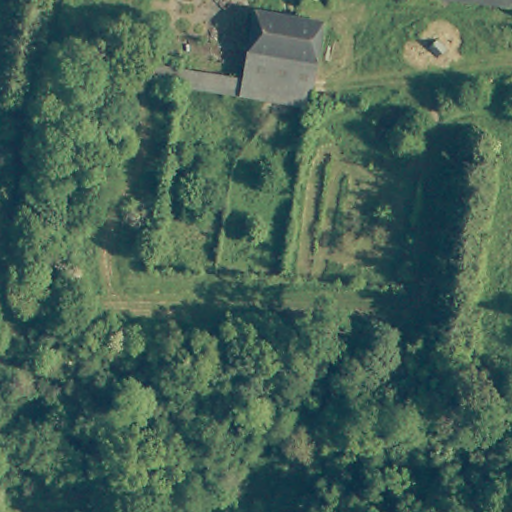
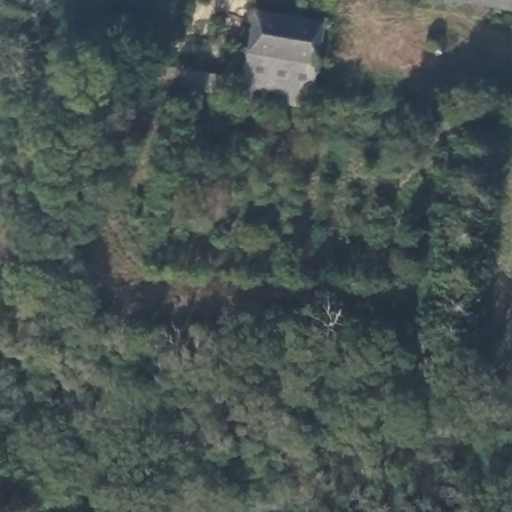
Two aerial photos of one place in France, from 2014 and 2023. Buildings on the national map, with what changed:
unchanged [(334,6),(307,4),(307,0),(335,0),(334,6)]
unchanged [(482,0),(512,0),(512,4),(482,0)]
unchanged [(328,21),(321,62),(252,51),(252,46),(257,10),(328,21)]
unchanged [(314,107),(154,80),(157,61),(248,76),(252,51),(321,62),(314,107)]

